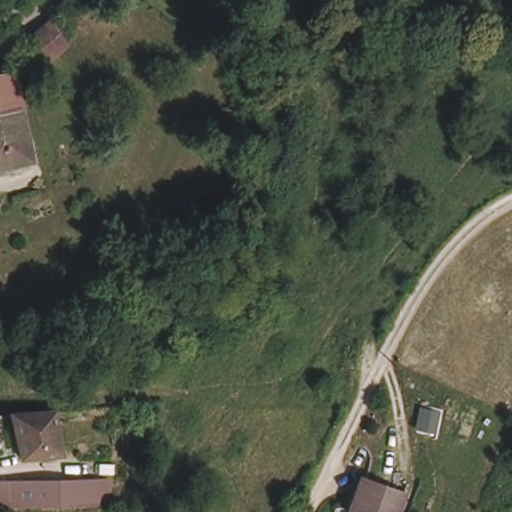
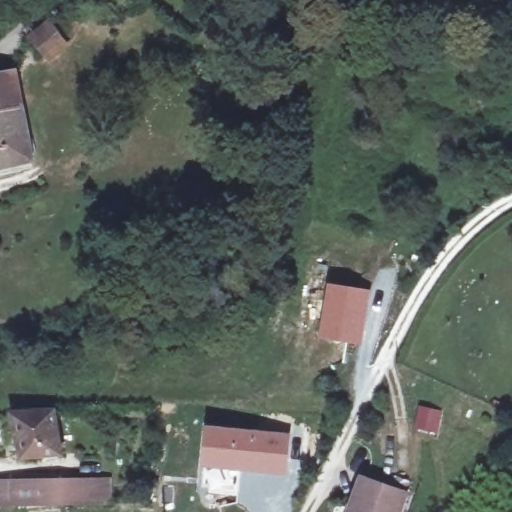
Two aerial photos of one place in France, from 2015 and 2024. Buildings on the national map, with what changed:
unchanged [(52,22),(67,42),(48,57),(32,37),(52,22)]
unchanged [(0,70),(20,67),(27,101),(0,105),(0,70)]
unchanged [(0,105),(27,101),(38,154),(22,159),(15,161),(16,167),(0,171),(0,105)]
new [(327,282),(373,290),(362,346),(318,338),(327,282)]
unchanged [(12,414),(52,412),(55,412),(62,454),(23,457),(12,414)]
new [(241,470),(239,492),(204,488),(205,466),(207,426),(291,434),(288,475),(241,470)]
unchanged [(351,510),(362,479),(405,494),(399,512),(351,512),(351,510)]
unchanged [(109,481),(110,505),(15,506),(0,506),(0,482),(14,482),(109,481)]

